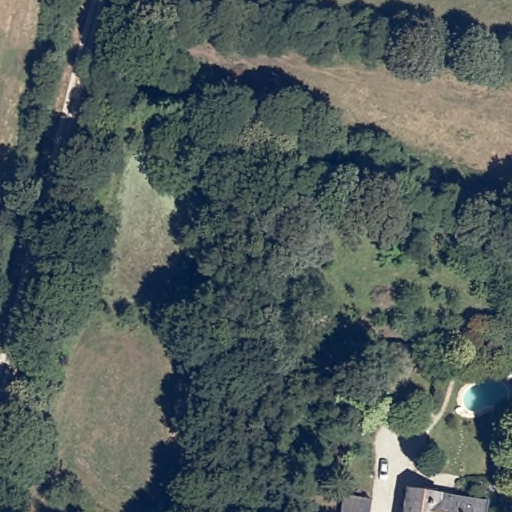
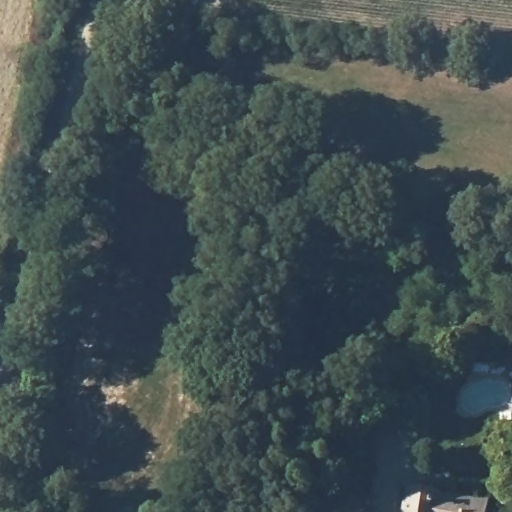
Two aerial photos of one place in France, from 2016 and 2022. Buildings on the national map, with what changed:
unchanged [(489,499),(489,512),(406,512),(408,494),(489,499)]

